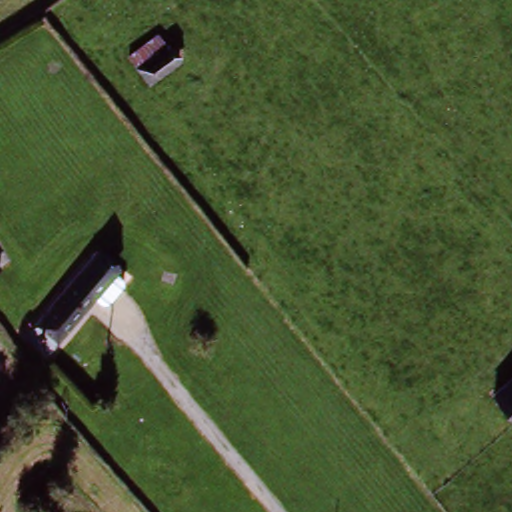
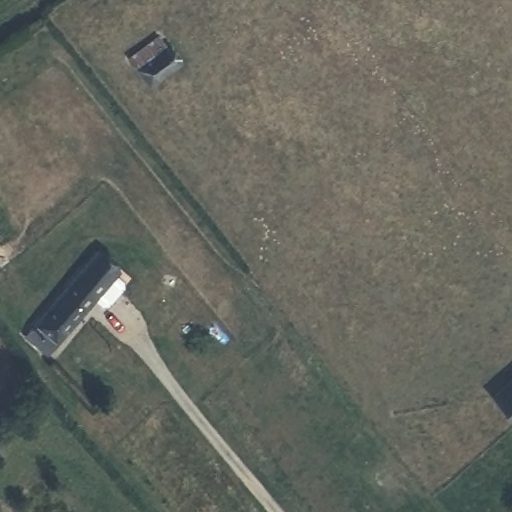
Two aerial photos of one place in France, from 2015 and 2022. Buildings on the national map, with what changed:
unchanged [(134,73),(162,51),(176,65),(146,86),(134,73)]
unchanged [(35,324),(83,263),(93,251),(116,269),(113,272),(121,280),(123,286),(108,304),(102,306),(93,298),(58,342),(48,353),(25,336),(35,324)]
unchanged [(512,412),(499,398),(512,387),(512,412)]

